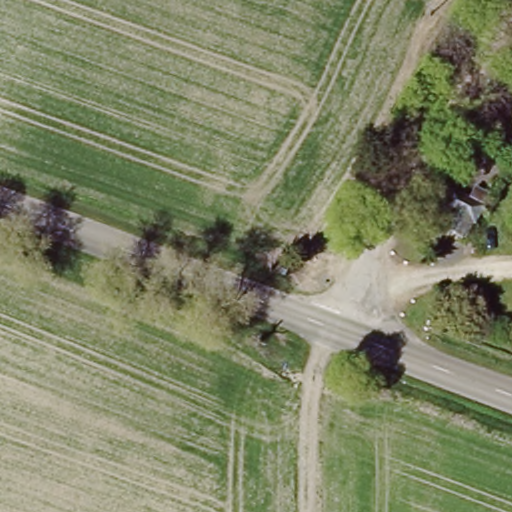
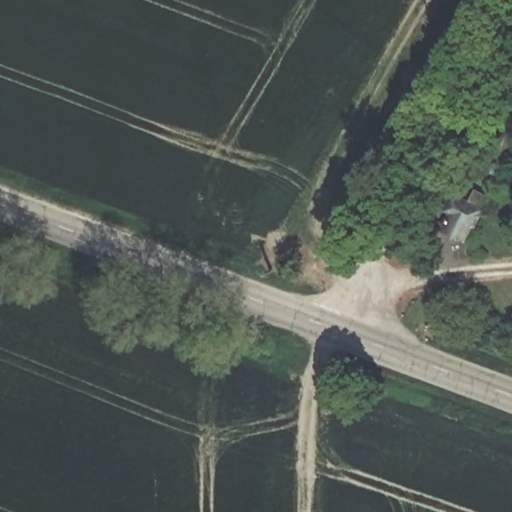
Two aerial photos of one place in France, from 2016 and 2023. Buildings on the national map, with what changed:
unchanged [(488,151),(478,174),(454,163),(464,140),(488,151)]
unchanged [(512,153),(512,169),(495,160),(500,148),(512,153)]
unchanged [(478,226),(469,220),(457,238),(440,226),(450,212),(440,205),(452,187),(489,210),(478,226)]

